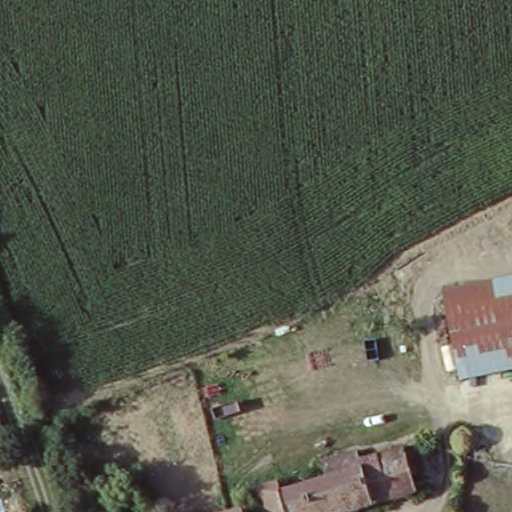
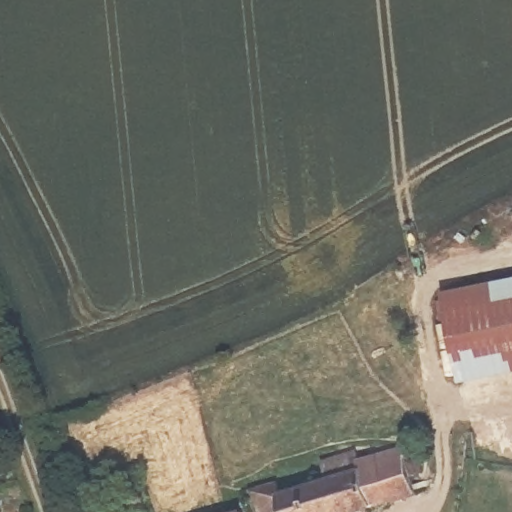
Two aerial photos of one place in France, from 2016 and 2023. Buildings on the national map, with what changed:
unchanged [(459,381),(439,292),(512,278),(512,371),(459,381)]
unchanged [(413,460),(419,481),(411,484),(413,498),(364,512),(289,512),(285,500),(324,487),(321,467),(354,457),(356,466),(401,453),(404,461),(413,460)]
unchanged [(279,486),(285,500),(289,512),(255,512),(254,512),(249,492),(279,486)]
unchanged [(241,512),(236,512),(241,511),(241,512)]

